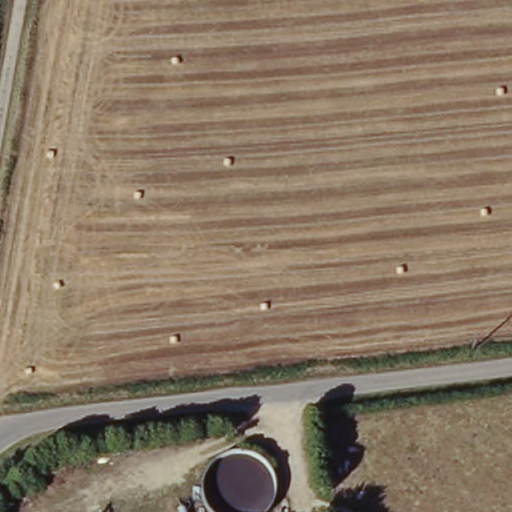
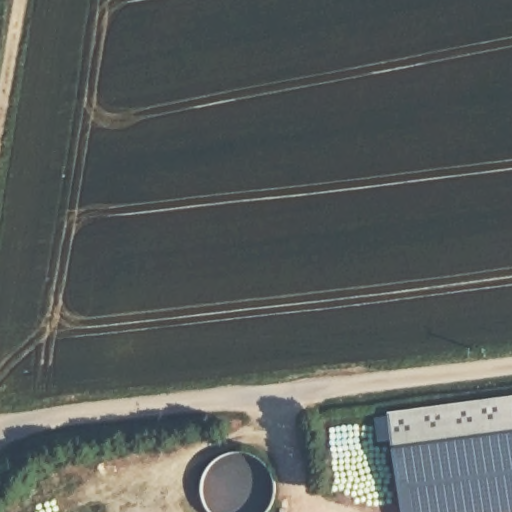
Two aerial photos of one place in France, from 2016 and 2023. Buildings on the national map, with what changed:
new [(402,512),(389,414),(512,397),(512,512),(402,512)]

